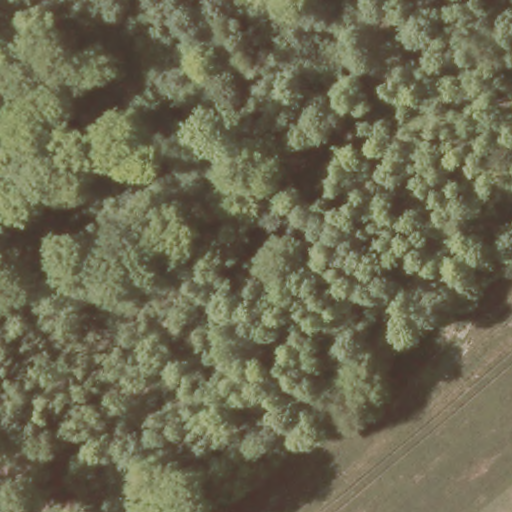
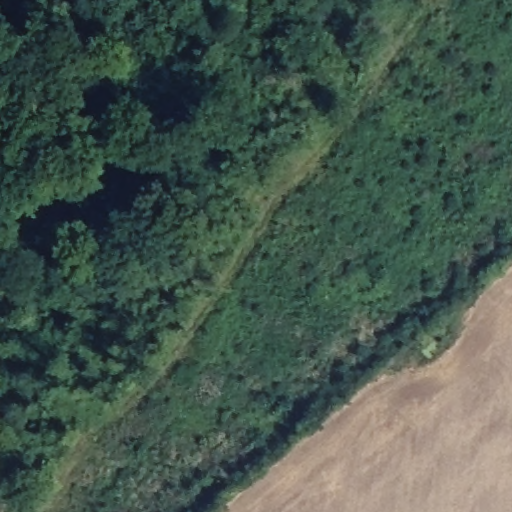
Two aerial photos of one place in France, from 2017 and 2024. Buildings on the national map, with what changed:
unchanged [(427,362),(419,351),(409,360),(400,348),(433,320),(442,332),(435,338),(442,350),(427,362)]

